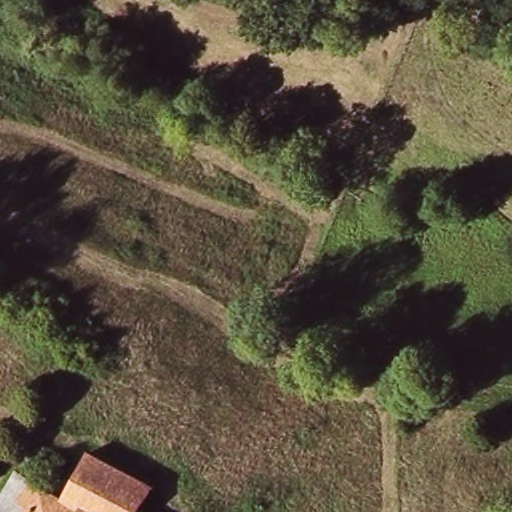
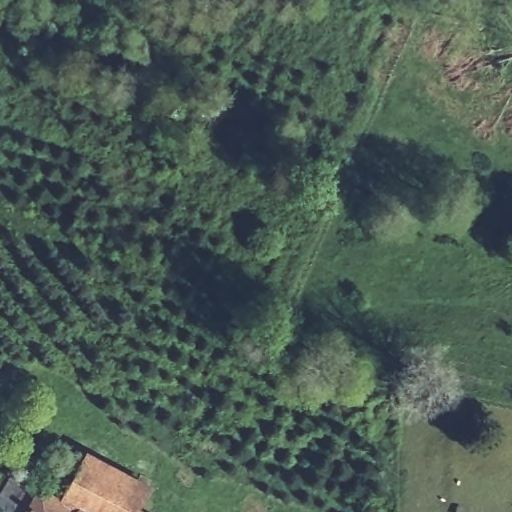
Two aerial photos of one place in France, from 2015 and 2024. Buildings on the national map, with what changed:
unchanged [(21,475),(64,500),(89,456),(95,459),(102,453),(107,453),(111,460),(110,468),(157,494),(148,512),(2,512),(21,475)]

